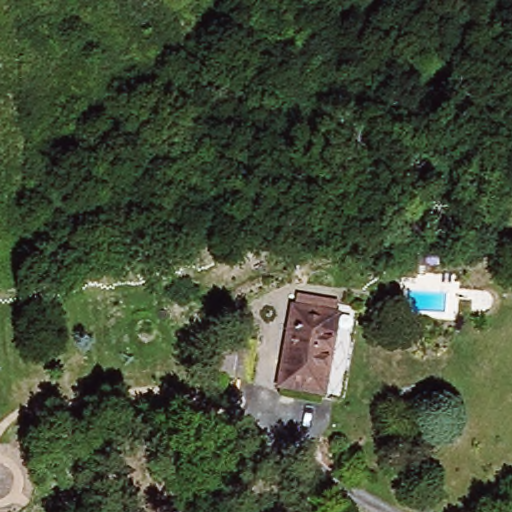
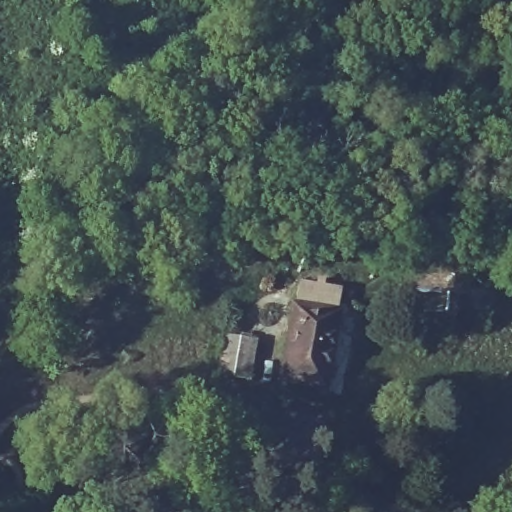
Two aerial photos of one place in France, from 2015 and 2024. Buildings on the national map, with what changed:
unchanged [(322,400),(279,392),(294,302),(333,308),(334,316),(336,320),(322,400)]
unchanged [(228,336),(260,342),(253,381),(221,376),(228,336)]

